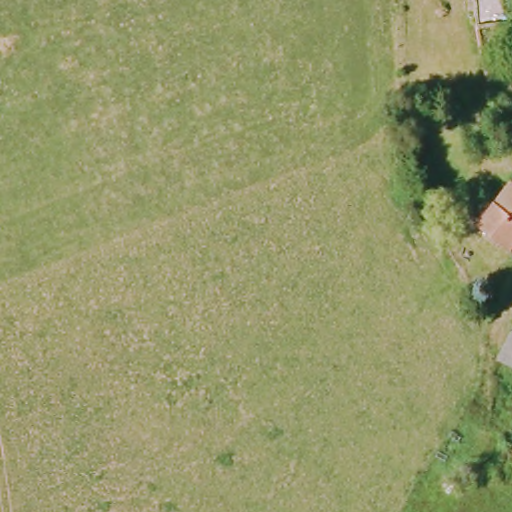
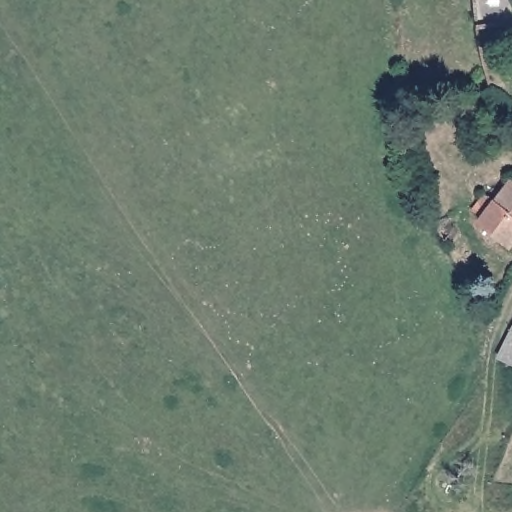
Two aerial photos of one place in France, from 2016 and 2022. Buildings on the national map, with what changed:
unchanged [(507,45),(478,46),(478,27),(508,28),(507,45)]
unchanged [(486,225),(512,190),(512,246),(486,225)]
unchanged [(512,328),(512,341),(507,339),(512,328)]

